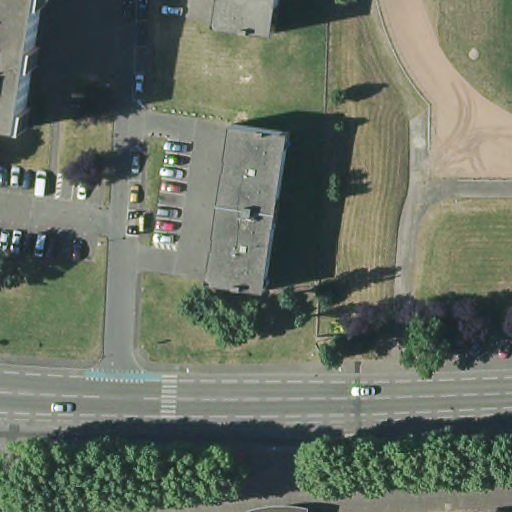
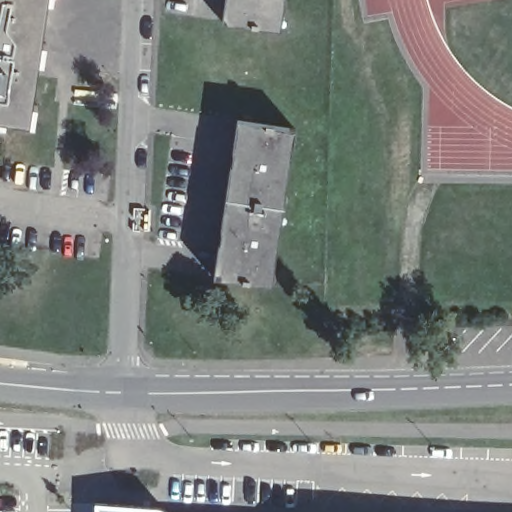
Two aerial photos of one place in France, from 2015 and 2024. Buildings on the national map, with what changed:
unchanged [(0,119),(0,0),(58,0),(58,1),(53,0),(47,43),(52,43),(50,63),(45,62),(38,104),(43,105),(40,124),(35,124),(0,119)]
unchanged [(282,30),(224,23),(227,0),(287,0),(282,30)]
unchanged [(297,132),(274,290),(215,282),(239,124),(297,132)]
new [(155,505),(162,507),(167,510),(168,512),(95,512),(95,503),(155,505)]

